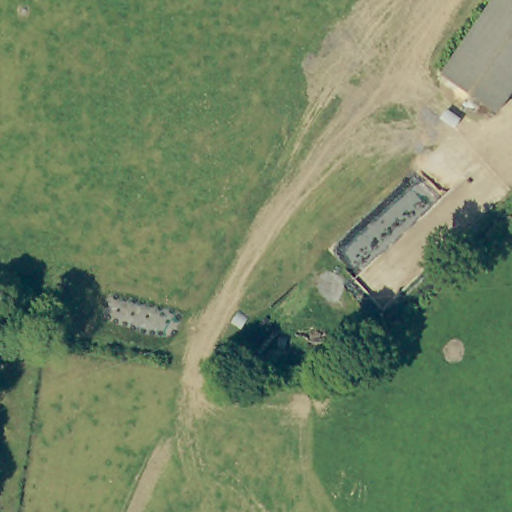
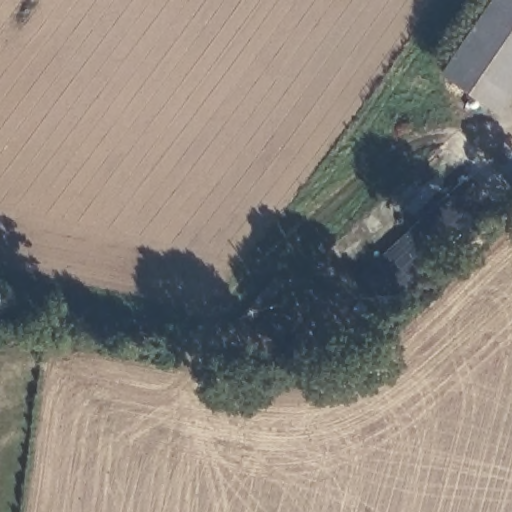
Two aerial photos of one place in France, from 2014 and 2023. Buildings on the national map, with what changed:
unchanged [(502,0),(512,0),(512,102),(506,110),(450,75),(502,0)]
unchanged [(30,341),(28,359),(1,355),(3,337),(30,341)]

